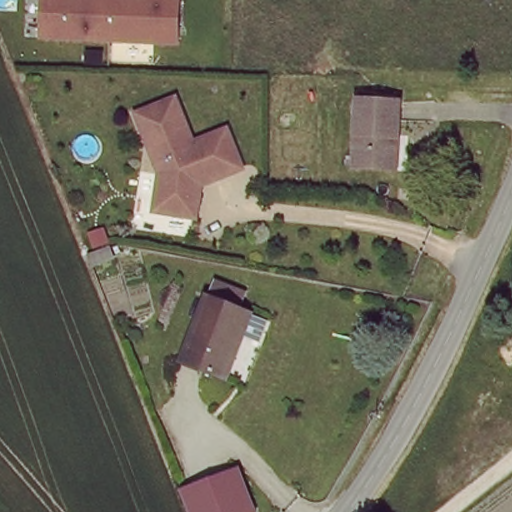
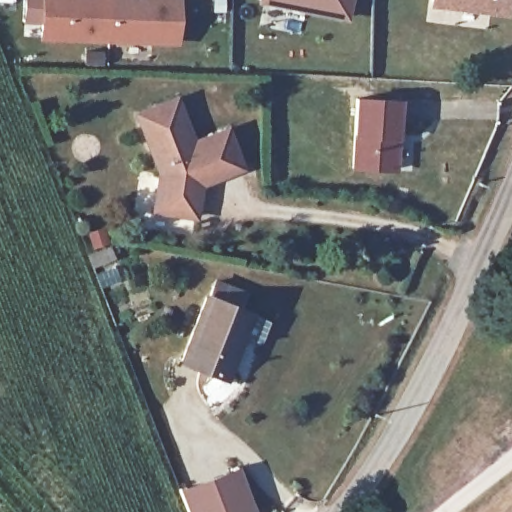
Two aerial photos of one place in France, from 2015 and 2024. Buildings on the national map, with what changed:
unchanged [(34,39),(36,0),(176,0),(174,42),(34,39)]
new [(256,2),(257,0),(351,0),(346,19),(256,2)]
new [(435,0),(512,0),(512,18),(433,8),(435,0)]
unchanged [(155,189),(157,168),(132,110),(169,93),(188,136),(221,121),(238,159),(209,172),(198,177),(194,210),(170,208),(154,206),(155,189)]
unchanged [(360,97),(397,100),(395,121),(389,121),(386,165),(357,163),(360,97)]
unchanged [(228,371),(182,355),(206,294),(209,295),(214,279),(252,292),(247,307),(254,310),(228,371)]
unchanged [(234,466),(253,512),(185,512),(176,489),(214,475),(234,466)]

